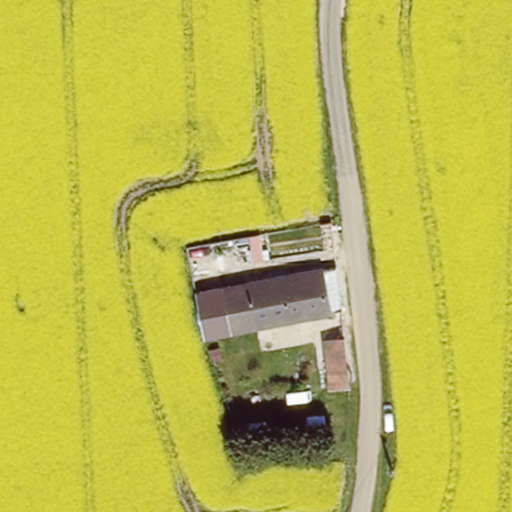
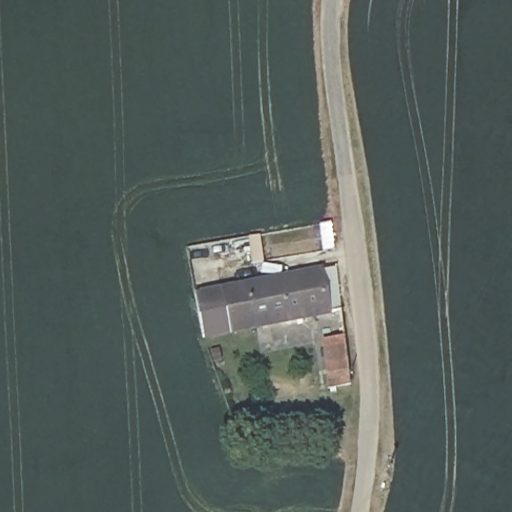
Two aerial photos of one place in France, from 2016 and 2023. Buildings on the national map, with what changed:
unchanged [(207,282),(330,259),(337,299),(214,322),(207,282)]
unchanged [(352,383),(340,384),(338,366),(330,367),(328,342),(347,340),(352,383)]

